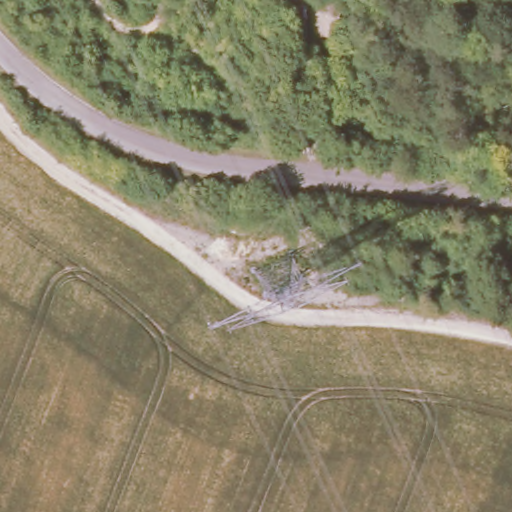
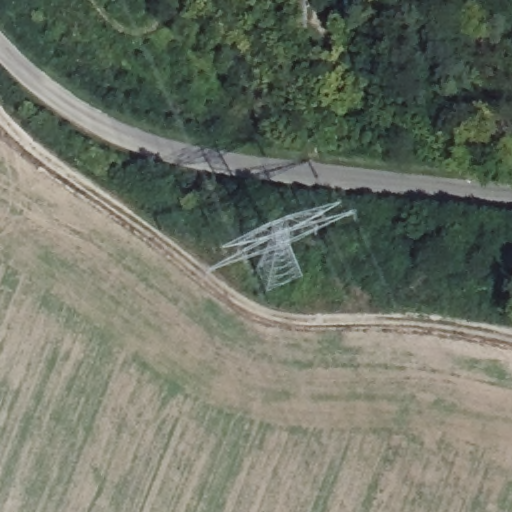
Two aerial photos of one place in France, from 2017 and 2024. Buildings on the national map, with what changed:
unchanged [(203,59),(191,95),(179,89),(190,55),(203,59)]

